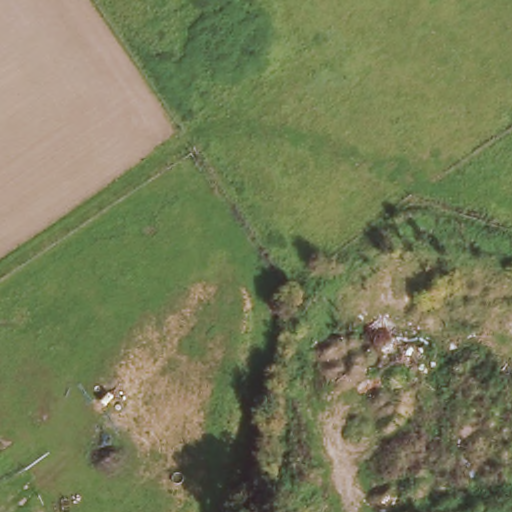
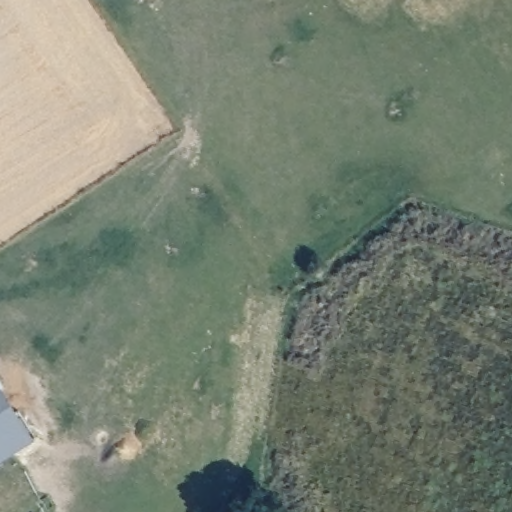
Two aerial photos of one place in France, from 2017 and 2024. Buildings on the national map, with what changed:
new [(0,460),(0,380),(37,437),(0,460)]

